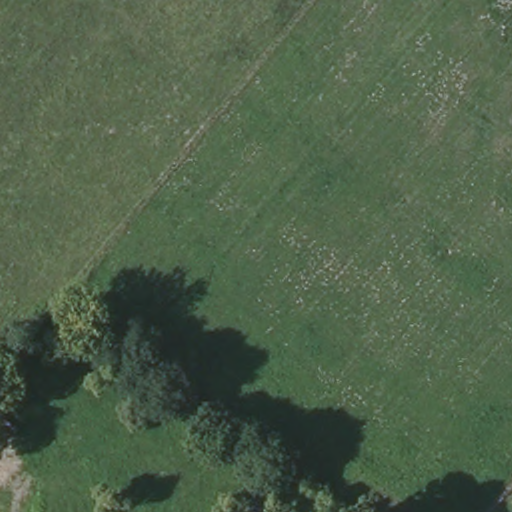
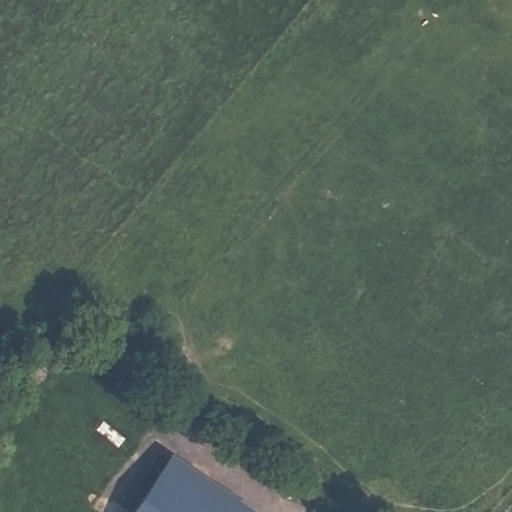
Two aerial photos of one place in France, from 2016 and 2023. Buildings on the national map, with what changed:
new [(136,512),(170,458),(251,512),(136,512)]

